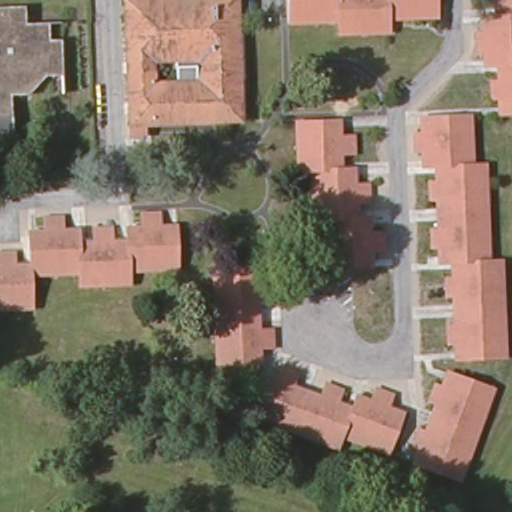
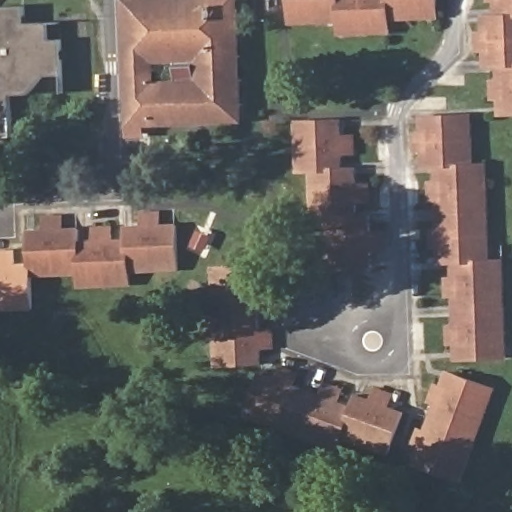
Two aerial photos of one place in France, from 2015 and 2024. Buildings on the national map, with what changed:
unchanged [(198,124),(130,126),(126,35),(125,14),(125,1),(137,0),(237,0),(241,109),(241,122),(198,124)]
unchanged [(340,30),(339,23),(339,19),(291,20),(290,12),(290,0),(438,0),(438,6),(438,14),(390,16),(390,22),(390,30),(340,30)]
unchanged [(498,98),(491,97),(491,82),(498,82),(497,67),(490,67),(483,67),(483,53),(476,53),(476,34),(482,33),(482,17),(490,17),(495,17),(495,3),(487,3),(487,0),(512,0),(512,116),(506,117),(499,117),(498,98)]
unchanged [(26,19),(49,18),(50,35),(63,36),(64,71),(48,71),(28,90),(12,91),(12,113),(12,128),(0,128),(0,3),(25,3),(26,19)]
unchanged [(445,260),(439,260),(439,245),(432,245),(431,236),(431,225),(438,225),(437,197),(430,197),(430,178),(436,178),(436,162),(430,162),(423,162),(422,148),(416,149),(415,130),(421,130),(421,112),(428,112),(465,112),(471,111),(472,160),(480,160),(488,160),(490,210),(491,256),(498,256),(505,256),(506,309),(507,355),(501,355),(462,357),(456,357),(455,341),(448,341),(447,323),(453,322),(453,294),(446,294),(446,274),(452,274),(452,259),(445,260)]
unchanged [(322,214),(308,214),(307,165),(292,165),(291,115),(305,115),(346,113),(346,129),(360,129),(361,145),(347,146),(347,163),(361,163),(361,179),(375,179),(375,195),(362,196),(363,212),(376,212),(376,229),(390,229),(390,245),(377,245),(377,263),(338,264),(324,265),(322,214)]
unchanged [(15,265),(30,264),(29,231),(45,231),(45,217),(64,217),(65,230),(81,230),(81,242),(94,242),(93,229),(114,228),(114,241),(126,240),(126,228),(141,227),(141,214),(161,213),(161,226),(177,226),(178,263),(179,271),(131,273),(131,279),(131,287),(80,288),(80,281),(79,275),(33,277),(34,303),(35,311),(0,312),(0,253),(15,253),(15,265)]
unchanged [(214,269),(221,268),(259,268),(260,283),(273,282),(274,302),(260,303),(261,330),(275,330),(275,349),(262,350),(262,367),(224,367),(216,367),(214,269)]
unchanged [(343,439),(341,445),(339,451),(246,416),(249,410),(262,374),(276,380),(281,368),(300,374),(295,387),(321,396),(326,384),(344,391),(340,403),(352,408),(357,396),(370,401),(376,388),(394,395),(390,408),(405,414),(392,449),(390,457),(343,439)]
unchanged [(420,450),(412,448),(419,429),(425,432),(435,405),(429,403),(435,386),(441,388),(447,372),(455,375),(489,387),(496,390),(462,482),(455,479),(421,467),(415,465),(420,450)]

